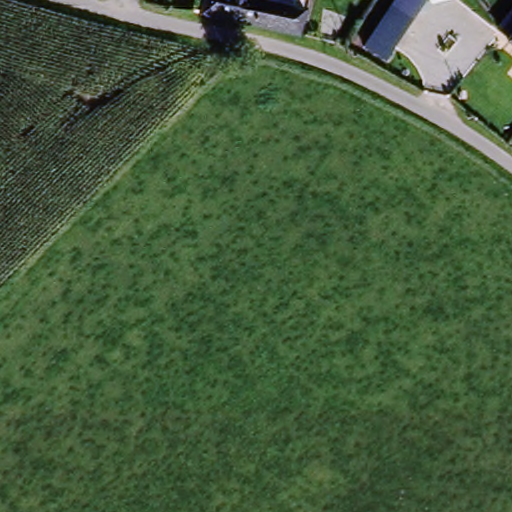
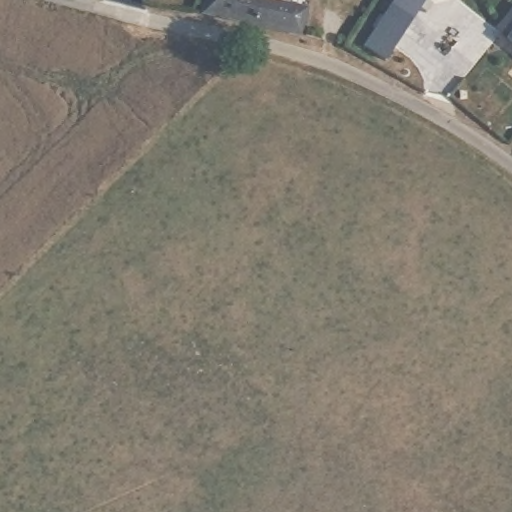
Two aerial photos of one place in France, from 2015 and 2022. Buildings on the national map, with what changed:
unchanged [(301,40),(204,21),(209,0),(251,0),(306,15),(301,40)]
unchanged [(361,43),(390,0),(422,0),(425,2),(384,61),(361,43)]
unchanged [(422,0),(426,0),(425,2),(422,0)]
unchanged [(512,41),(512,53),(506,48),(512,41)]

